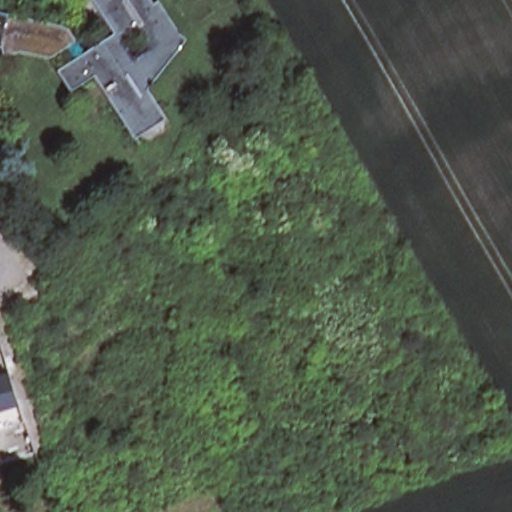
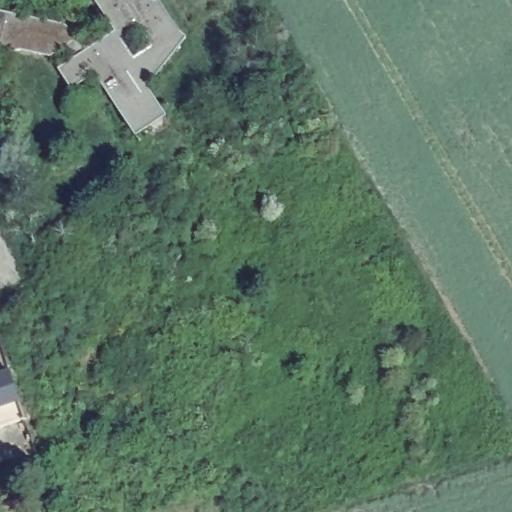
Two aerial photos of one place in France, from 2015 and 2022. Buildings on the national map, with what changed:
unchanged [(86,52),(117,33),(96,0),(155,0),(158,4),(161,1),(181,31),(144,91),(160,116),(136,131),(96,73),(75,87),(63,68),(78,57),(86,52)]
unchanged [(70,45),(53,55),(23,51),(10,56),(4,47),(0,46),(0,11),(63,23),(86,52),(78,57),(70,45)]
unchanged [(8,369),(17,397),(23,416),(0,424),(0,371),(8,369)]

